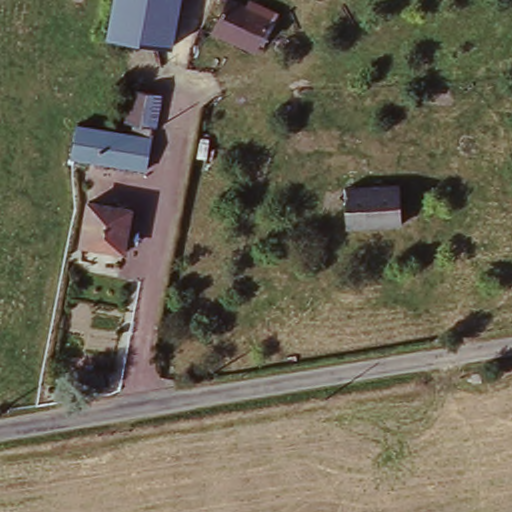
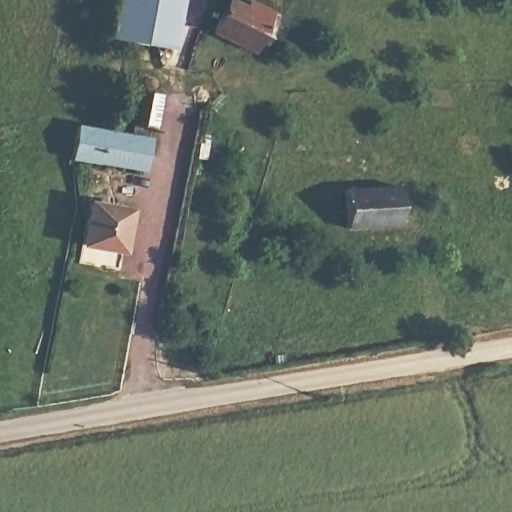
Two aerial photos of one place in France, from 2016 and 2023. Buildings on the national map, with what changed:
unchanged [(117,0),(179,0),(170,52),(109,42),(117,0)]
unchanged [(229,6),(246,15),(250,10),(270,19),(252,55),(215,37),(229,6)]
unchanged [(132,91),(162,96),(157,127),(126,122),(132,91)]
unchanged [(79,128),(147,141),(142,168),(72,157),(79,128)]
unchanged [(396,189),(399,226),(347,231),(346,192),(396,189)]
unchanged [(125,211),(119,251),(76,246),(85,206),(125,211)]

